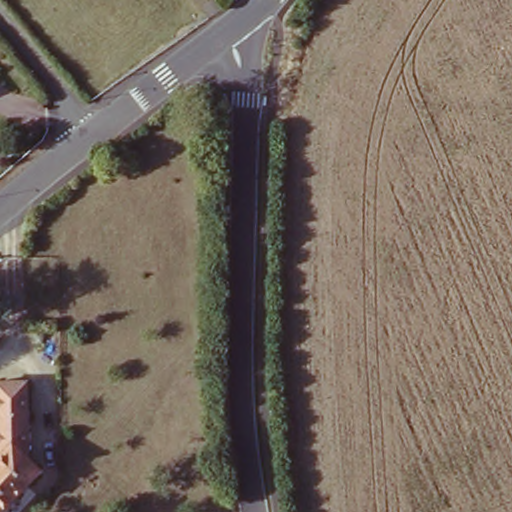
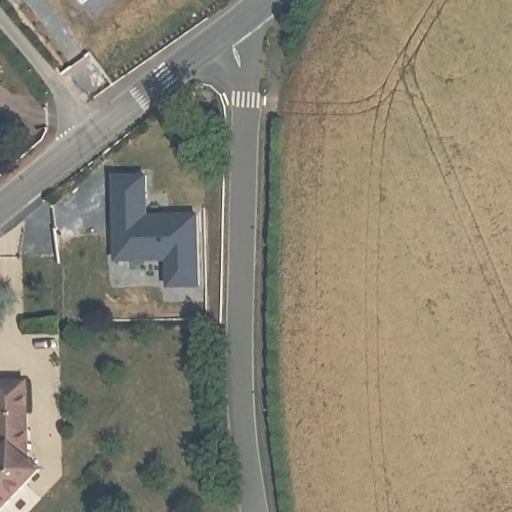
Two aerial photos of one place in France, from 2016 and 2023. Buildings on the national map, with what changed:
new [(144,176),(144,216),(195,214),(197,282),(169,284),(168,258),(116,258),(115,175),(144,176)]
unchanged [(27,454),(40,466),(0,508),(0,379),(24,379),(27,454)]

